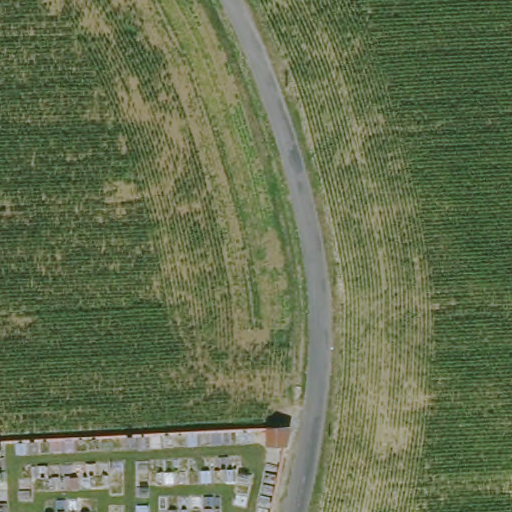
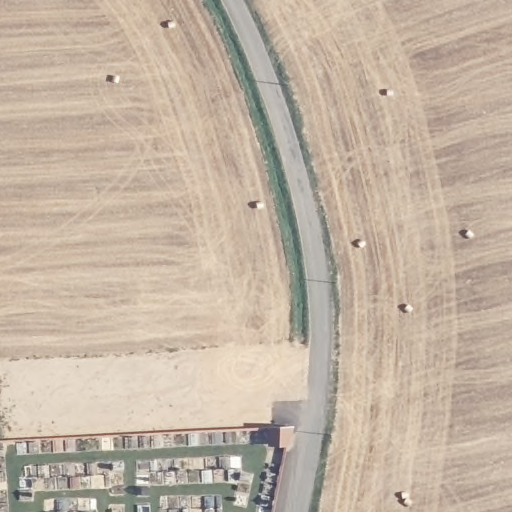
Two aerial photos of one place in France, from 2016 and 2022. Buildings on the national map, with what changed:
unchanged [(290,427),(287,446),(270,442),(269,428),(290,427)]

